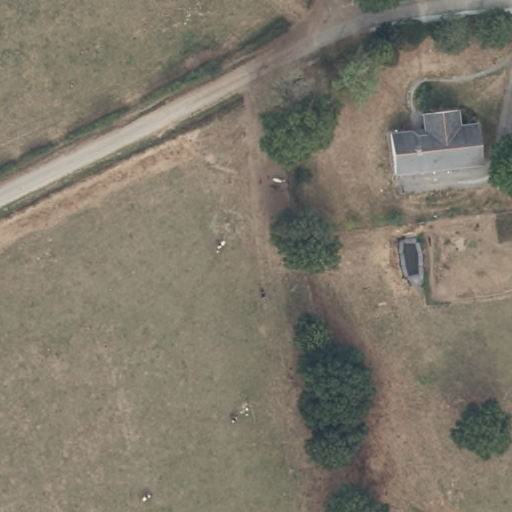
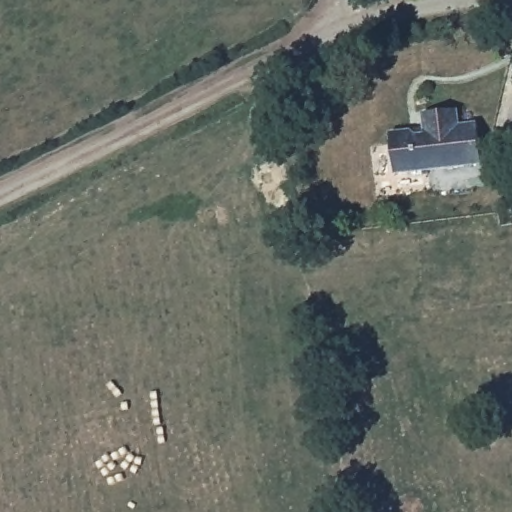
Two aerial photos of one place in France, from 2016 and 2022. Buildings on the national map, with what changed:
unchanged [(392,166),(389,125),(422,121),(421,105),(456,101),(457,117),(475,116),(479,154),(480,157),(455,159),(392,166)]

